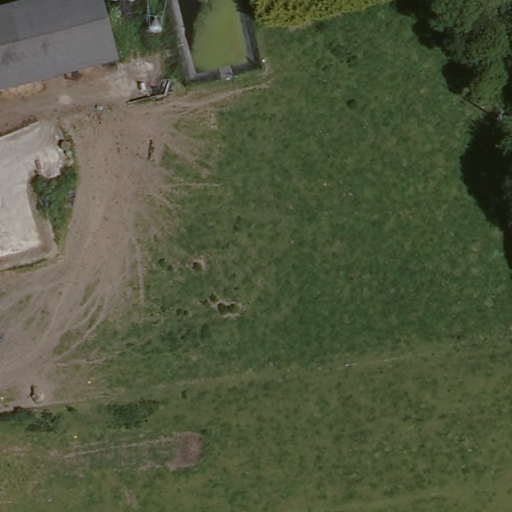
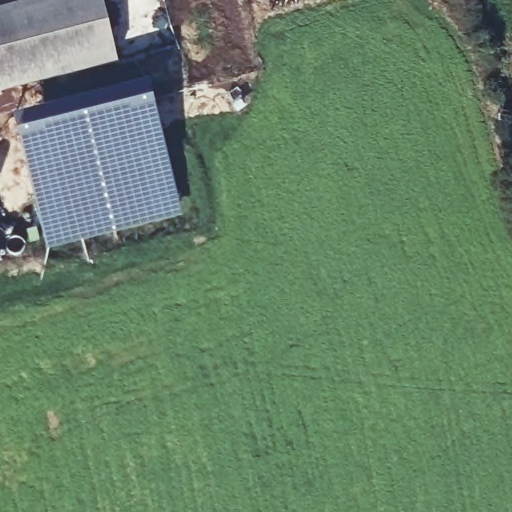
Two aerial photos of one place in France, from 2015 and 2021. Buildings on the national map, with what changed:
unchanged [(46,0),(110,0),(124,63),(0,94),(0,11),(46,0)]
new [(19,134),(14,117),(151,83),(154,100),(183,217),(49,250),(19,134)]

